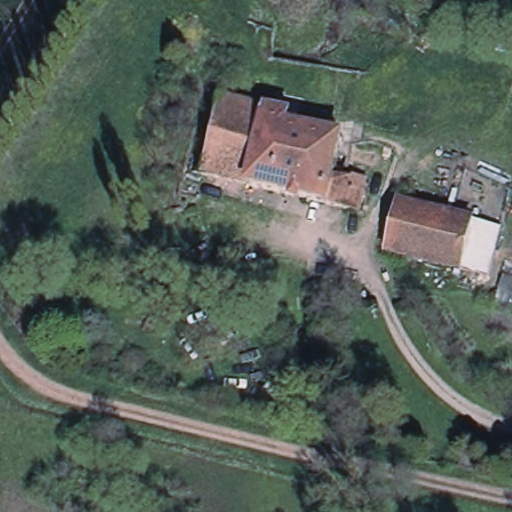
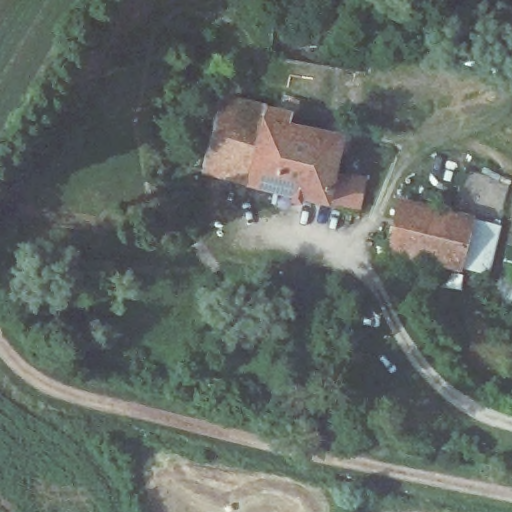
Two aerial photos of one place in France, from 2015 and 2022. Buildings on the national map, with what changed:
unchanged [(291,112),(289,124),(342,137),(335,167),(328,200),(204,171),(220,95),(291,112)]
unchanged [(339,168),(370,175),(362,208),(328,200),(335,167),(339,168)]
unchanged [(471,220),(460,266),(387,249),(399,200),(471,220)]

